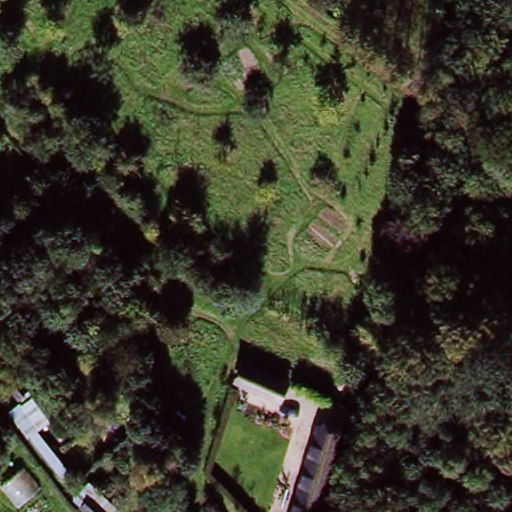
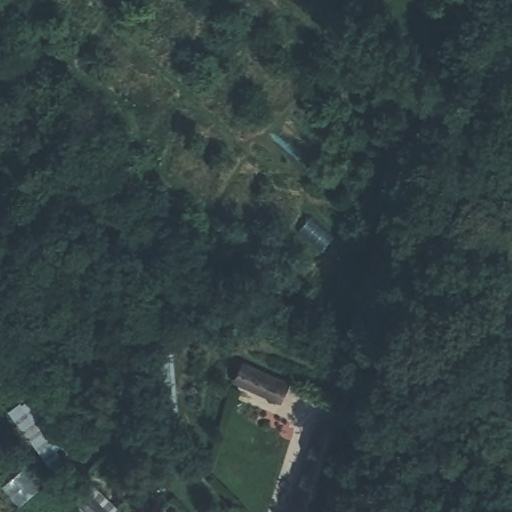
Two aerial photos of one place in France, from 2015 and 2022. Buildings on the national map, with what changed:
unchanged [(130,380),(114,395),(87,371),(97,362),(104,368),(110,362),(130,380)]
unchanged [(232,389),(243,362),(290,387),(277,408),(232,389)]
unchanged [(319,512),(288,512),(328,421),(356,434),(319,512)]

